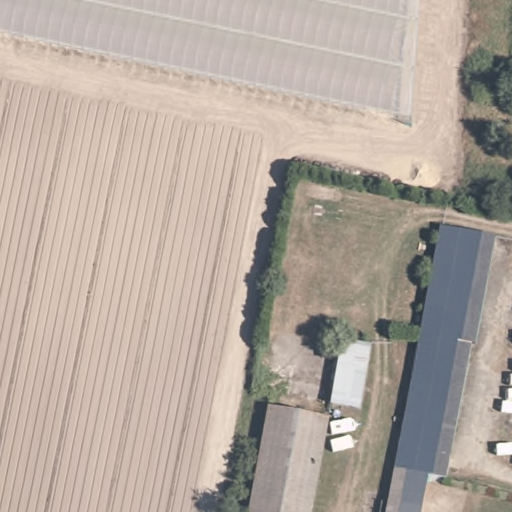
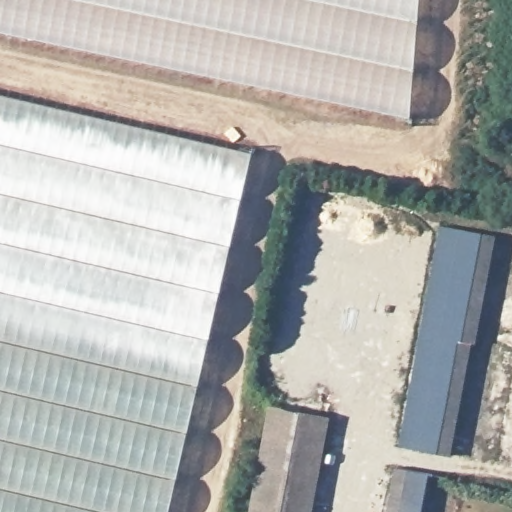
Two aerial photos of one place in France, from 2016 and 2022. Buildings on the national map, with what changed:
unchanged [(0,0),(421,0),(412,116),(0,31),(0,0)]
new [(170,512),(0,512),(0,95),(254,154),(170,512)]
unchanged [(476,237),(427,512),(385,512),(439,229),(476,237)]
unchanged [(476,237),(497,242),(478,345),(471,343),(448,475),(434,474),(476,237)]
unchanged [(324,403),(337,339),(371,348),(355,408),(324,403)]
unchanged [(308,512),(250,512),(269,408),(325,419),(308,512)]

